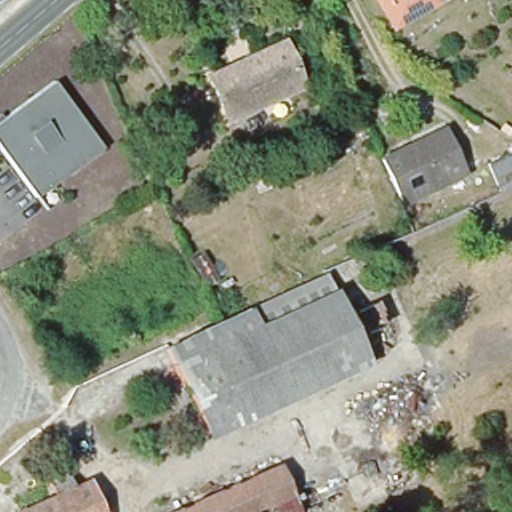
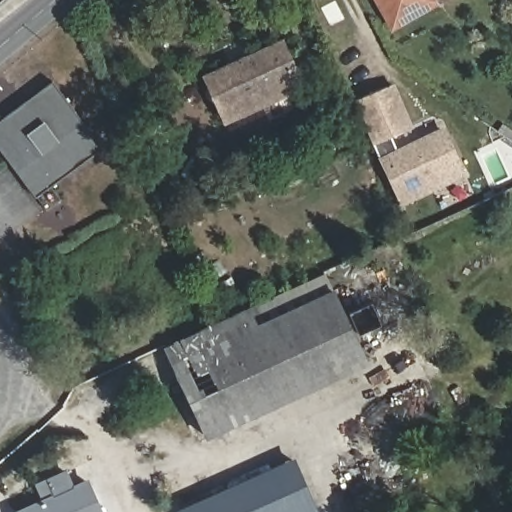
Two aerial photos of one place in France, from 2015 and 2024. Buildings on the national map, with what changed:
unchanged [(370,0),(445,0),(388,32),(370,0)]
unchanged [(226,119),(208,77),(281,44),(304,95),(247,120),(230,128),(226,119)]
unchanged [(35,200),(0,153),(0,121),(51,83),(101,150),(35,200)]
new [(392,136),(398,151),(382,158),(375,144),(357,101),(394,83),(415,128),(392,136)]
unchanged [(463,174),(403,203),(382,158),(442,130),(463,174)]
unchanged [(487,165),(509,155),(512,161),(512,188),(500,193),(487,165)]
unchanged [(254,309),(262,325),(338,290),(372,363),(212,438),(170,348),(254,309)]
unchanged [(67,404),(72,393),(82,399),(77,409),(67,404)]
unchanged [(303,512),(179,512),(282,466),(303,512)]
unchanged [(17,512),(58,494),(51,479),(70,470),(76,485),(92,478),(107,512),(17,512)]

